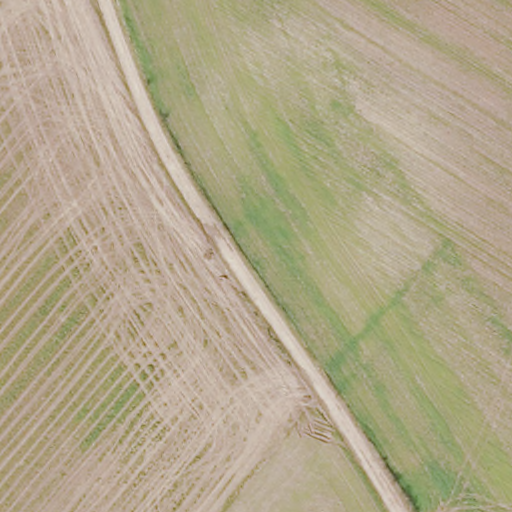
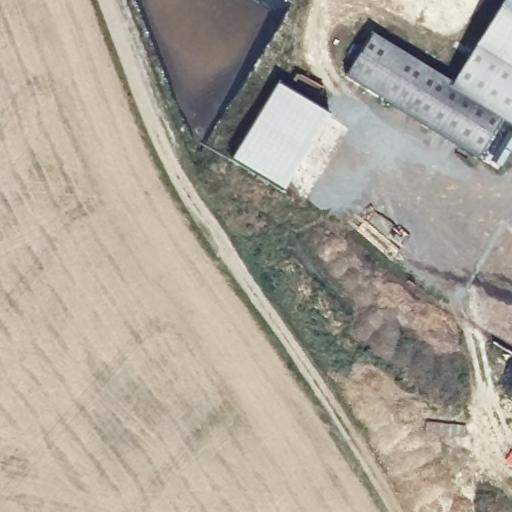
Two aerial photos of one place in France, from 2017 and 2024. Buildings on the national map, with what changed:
new [(455,85),(508,0),(512,0),(512,74),(465,150),(347,77),(375,35),(455,85)]
new [(507,118),(480,160),(465,150),(512,74),(512,121),(507,118)]
new [(280,83),(330,114),(282,193),(232,161),(280,83)]

